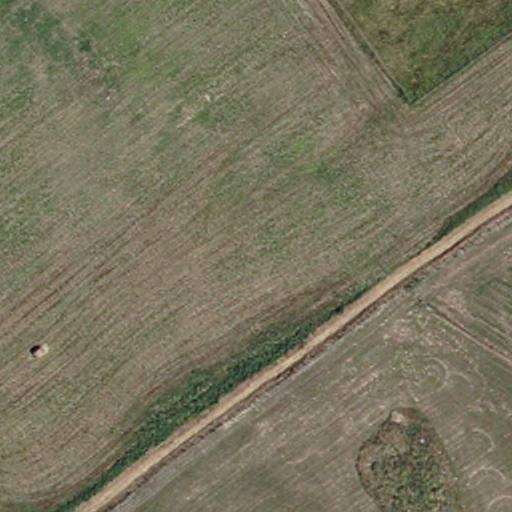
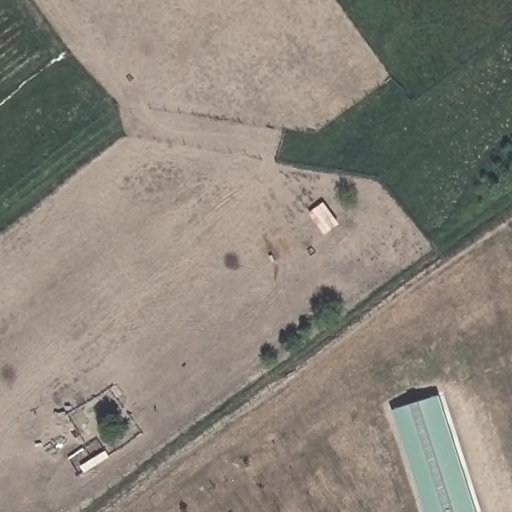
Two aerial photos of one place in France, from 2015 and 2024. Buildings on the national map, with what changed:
new [(443,396),(479,512),(429,512),(397,413),(424,405),(423,402),(443,396)]

